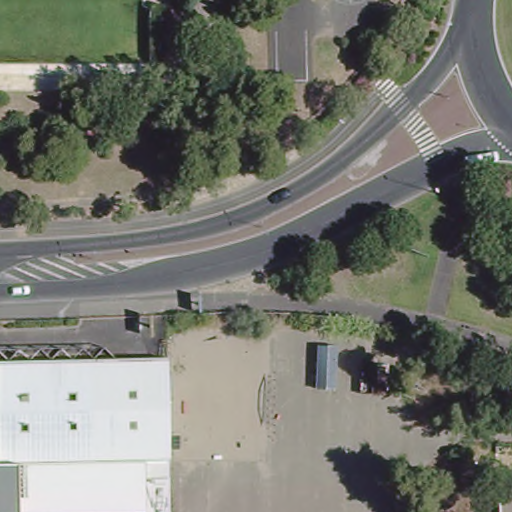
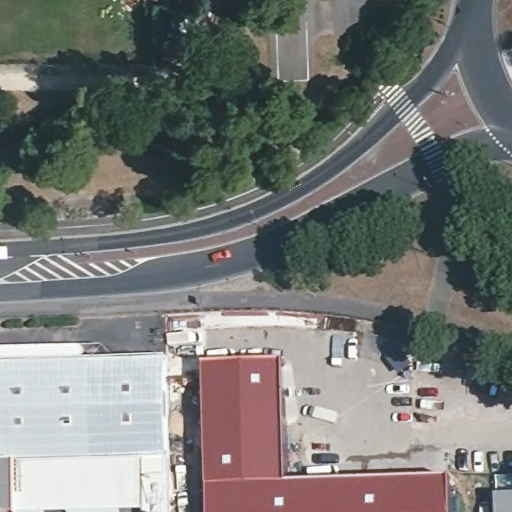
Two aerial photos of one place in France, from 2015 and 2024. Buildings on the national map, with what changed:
unchanged [(146,458),(0,462),(0,363),(171,358),(176,512),(148,512),(146,458)]
new [(205,367),(283,363),(287,486),(452,480),(452,512),(210,512),(205,367)]
unchanged [(146,458),(148,512),(0,512),(0,462),(146,458)]
unchanged [(512,512),(501,512),(501,497),(512,496),(512,512)]

